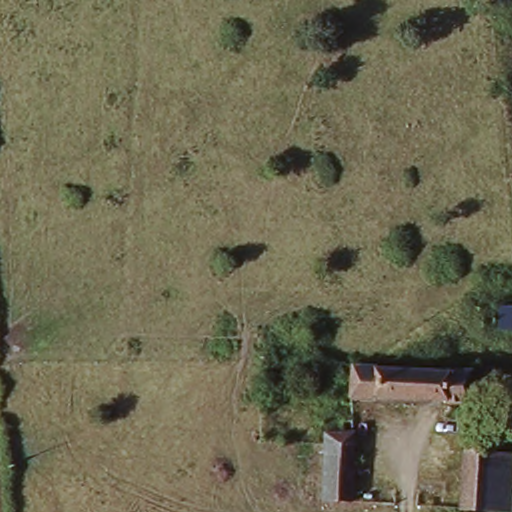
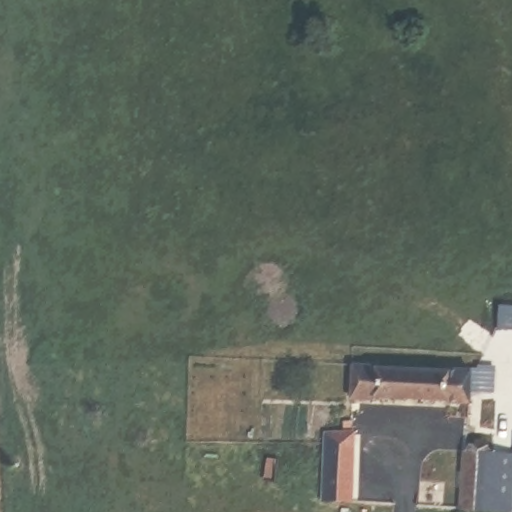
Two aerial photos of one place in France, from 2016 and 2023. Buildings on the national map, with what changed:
unchanged [(512,332),(493,332),(495,304),(512,304),(512,332)]
unchanged [(471,372),(469,403),(444,403),(445,398),(368,395),(365,399),(341,398),(344,366),(471,372)]
unchanged [(354,436),(343,503),(318,500),(326,432),(354,436)]
unchanged [(491,440),(490,456),(512,457),(512,512),(466,512),(455,511),(460,439),(491,440)]

